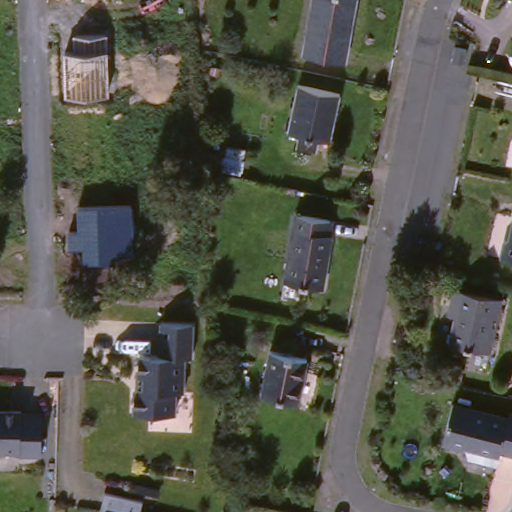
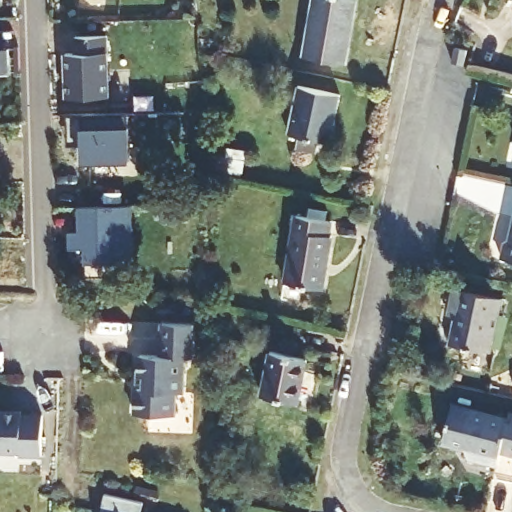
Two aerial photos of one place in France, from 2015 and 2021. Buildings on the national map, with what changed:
unchanged [(342,69),(302,61),(313,0),(331,0),(353,5),(342,69)]
unchanged [(107,52),(108,96),(65,100),(63,53),(72,52),(71,36),(106,35),(107,52)]
unchanged [(3,78),(0,79),(0,53),(2,52),(3,78)]
unchanged [(474,73),(458,70),(461,52),(477,55),(474,73)]
unchanged [(338,102),(327,154),(286,145),(297,92),(338,102)]
new [(81,164),(81,149),(68,147),(66,116),(127,114),(129,129),(129,162),(81,164)]
unchanged [(135,235),(112,261),(82,262),(81,249),(70,249),(69,230),(78,229),(77,206),(132,204),(135,235)]
unchanged [(500,252),(505,247),(512,213),(512,273),(495,270),(500,252)]
unchanged [(328,231),(325,245),(330,246),(321,300),(283,294),(295,225),(328,231)]
unchanged [(499,306),(487,360),(451,352),(460,318),(451,316),(455,296),(499,306)]
unchanged [(130,385),(133,385),(135,350),(155,351),(157,318),(189,320),(187,353),(180,353),(179,387),(171,387),(170,411),(129,409),(130,385)]
unchanged [(305,366),(297,409),(260,402),(268,358),(305,366)]
unchanged [(57,420),(55,461),(33,460),(33,457),(0,455),(0,415),(36,417),(36,420),(57,420)]
unchanged [(502,428),(503,421),(512,424),(512,465),(495,461),(492,474),(465,467),(466,459),(437,452),(446,415),(502,428)]
unchanged [(142,507),(142,512),(101,512),(104,499),(142,507)]

